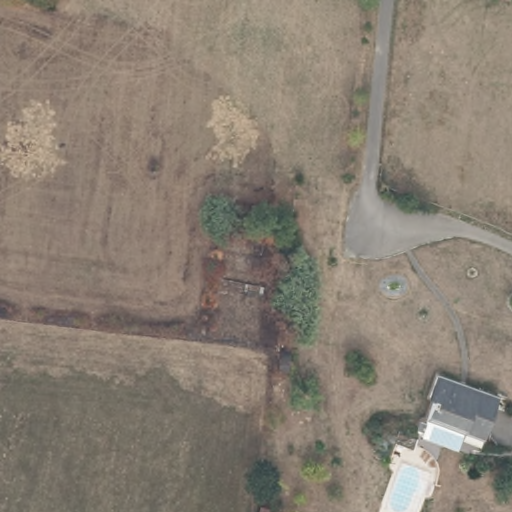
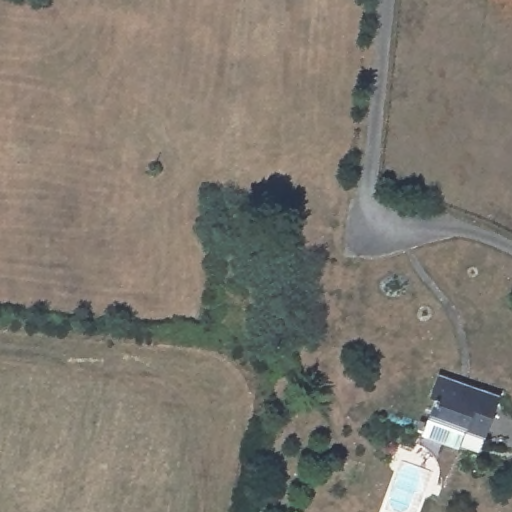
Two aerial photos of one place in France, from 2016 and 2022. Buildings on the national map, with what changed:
unchanged [(467,425),(467,428),(428,415),(435,397),(431,395),(436,374),(502,397),(489,433),(467,425)]

